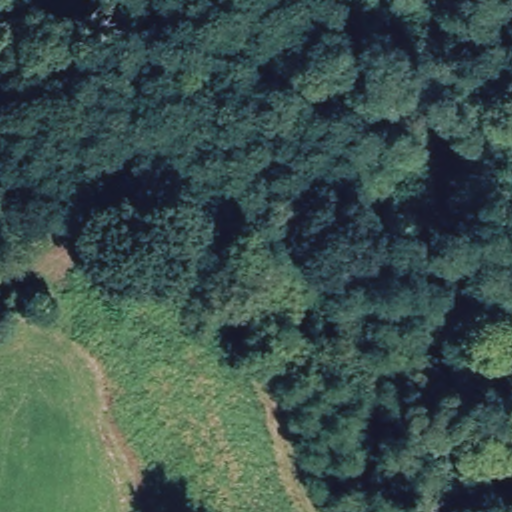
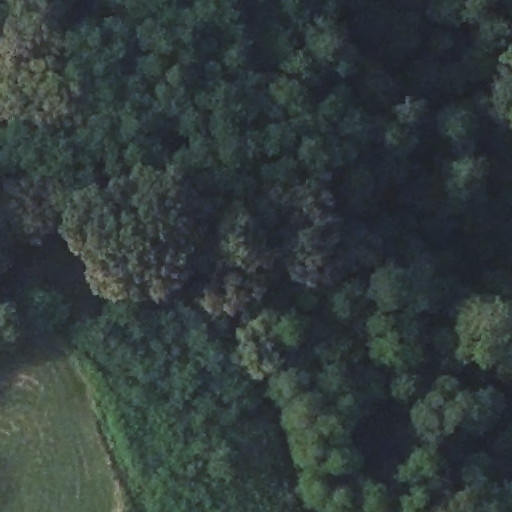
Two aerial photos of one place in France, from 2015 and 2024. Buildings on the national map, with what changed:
unchanged [(30,320),(0,314),(0,306),(7,278),(39,289),(30,320)]

